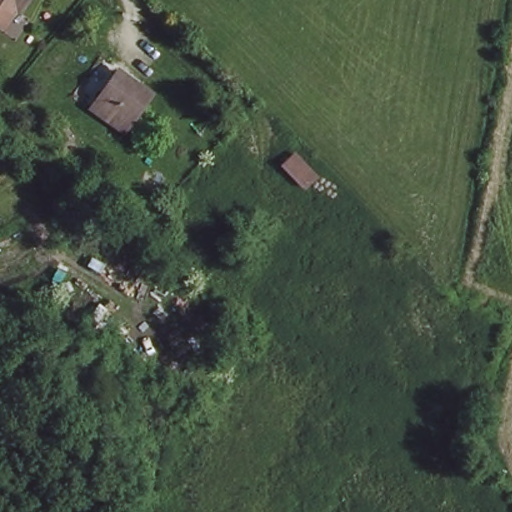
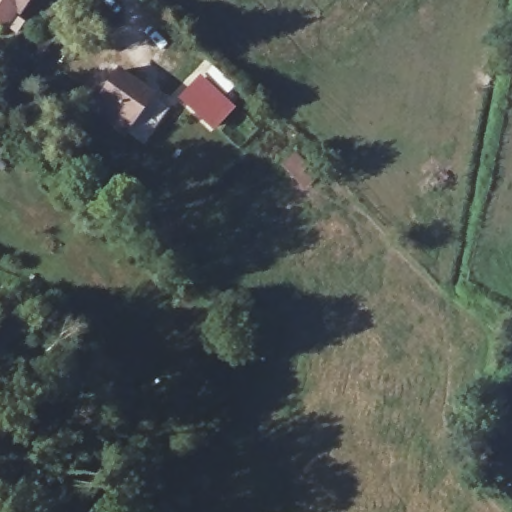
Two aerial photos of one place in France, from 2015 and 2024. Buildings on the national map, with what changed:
unchanged [(20,0),(7,17),(0,11),(0,0),(27,0),(24,4),(20,0)]
unchanged [(150,95),(122,129),(90,102),(117,70),(150,95)]
new [(236,108),(213,132),(177,99),(200,74),(236,108)]
unchanged [(322,181),(304,198),(278,169),(294,155),(322,181)]

